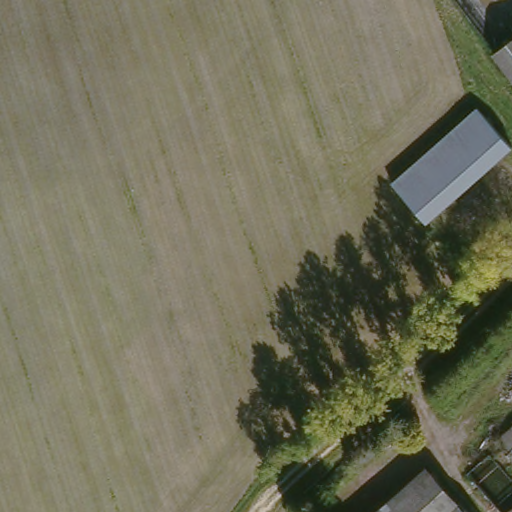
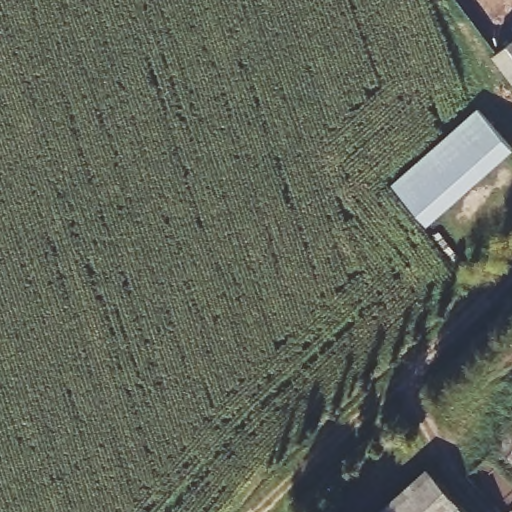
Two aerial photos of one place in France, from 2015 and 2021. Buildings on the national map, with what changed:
unchanged [(512,38),(512,75),(494,51),(512,38)]
unchanged [(512,151),(424,224),(391,183),(482,108),(512,146),(512,151)]
unchanged [(512,426),(512,451),(499,437),(512,426)]
unchanged [(435,474),(470,512),(394,512),(435,474)]

